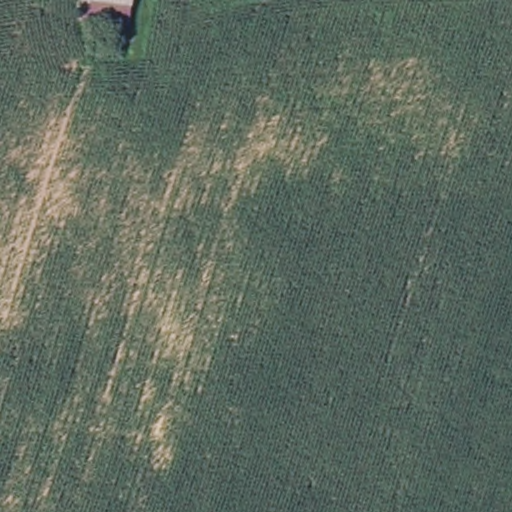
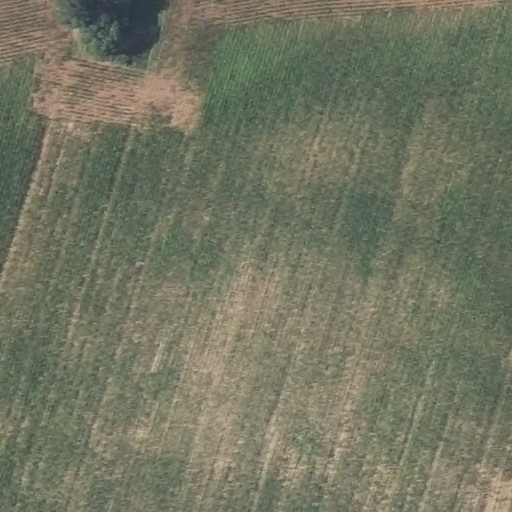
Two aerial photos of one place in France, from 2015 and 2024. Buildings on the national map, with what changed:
unchanged [(81,0),(132,0),(130,10),(80,2),(81,0)]
unchanged [(130,10),(126,32),(78,24),(80,2),(130,10)]

